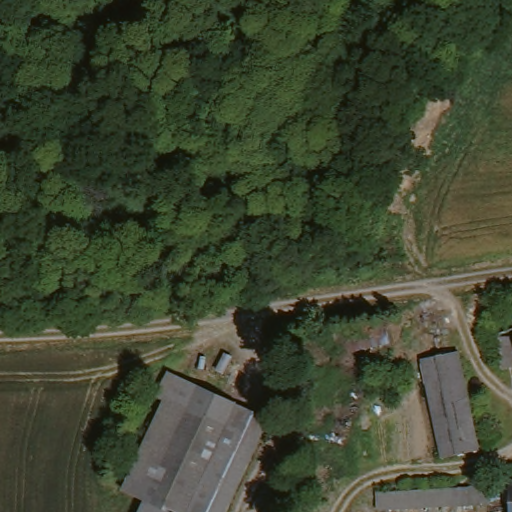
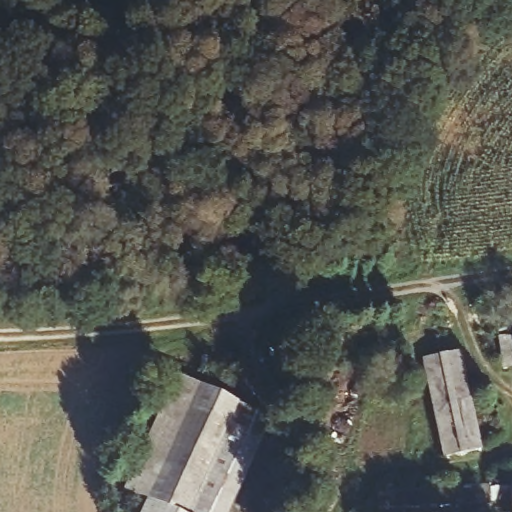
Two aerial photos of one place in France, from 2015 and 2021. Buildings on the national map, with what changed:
unchanged [(504,369),(500,334),(512,333),(512,368),(504,369)]
unchanged [(450,360),(468,455),(433,461),(415,366),(450,360)]
unchanged [(132,512),(136,503),(114,493),(158,401),(146,395),(162,371),(267,417),(223,512),(132,512)]
unchanged [(507,489),(507,507),(377,510),(376,493),(507,489)]
unchanged [(508,512),(507,507),(507,489),(512,489),(512,512),(508,512)]

